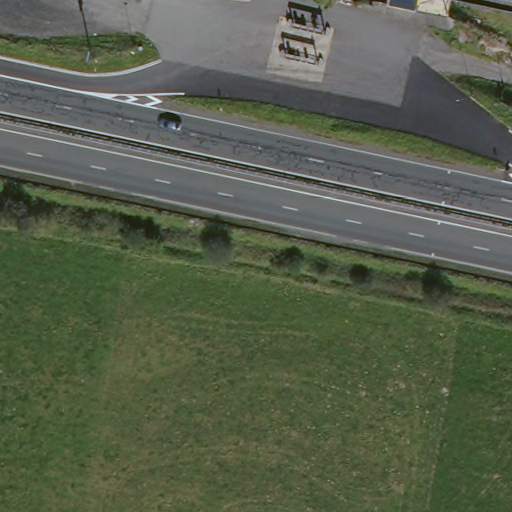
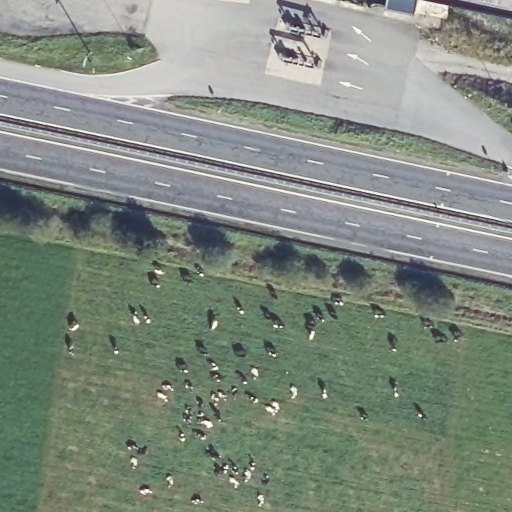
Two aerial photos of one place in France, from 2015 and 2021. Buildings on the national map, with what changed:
unchanged [(446,21),(384,9),(386,0),(512,0),(512,12),(451,0),(446,21)]

